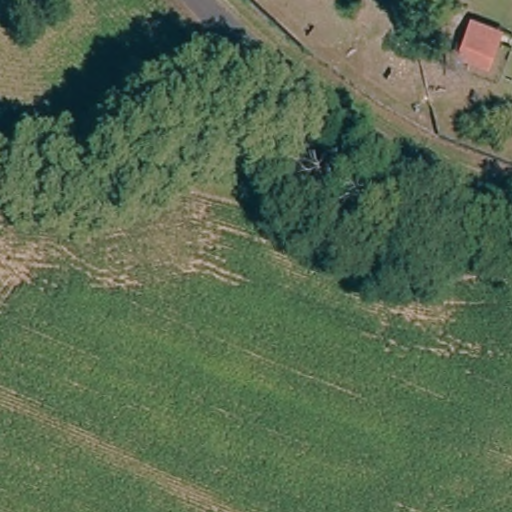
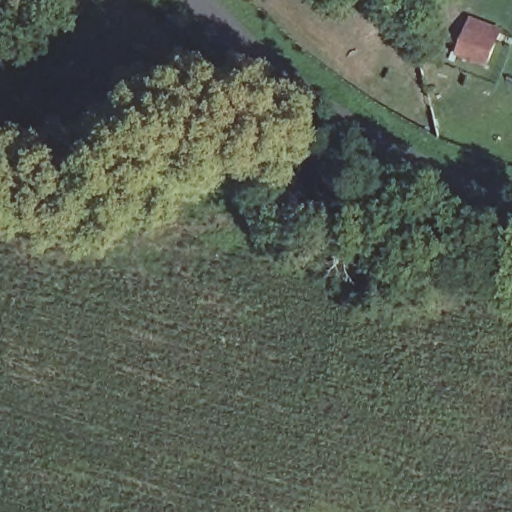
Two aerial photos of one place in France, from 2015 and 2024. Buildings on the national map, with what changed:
unchanged [(495,32),(480,66),(450,55),(465,20),(495,32)]

